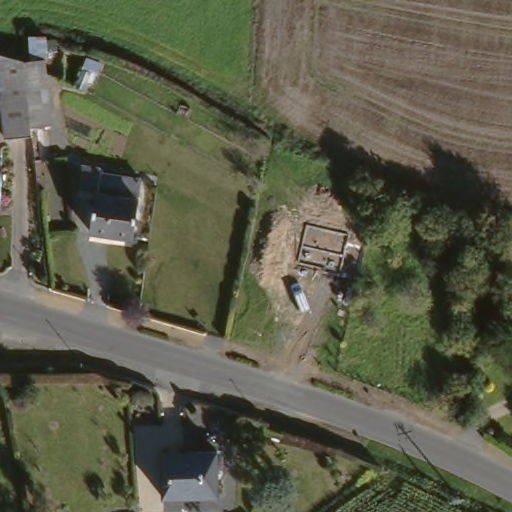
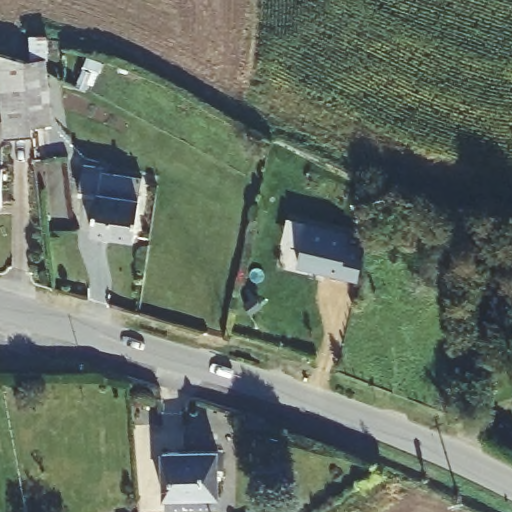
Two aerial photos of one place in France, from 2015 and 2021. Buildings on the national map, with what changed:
unchanged [(26,132),(2,131),(0,113),(0,45),(20,51),(26,132)]
unchanged [(80,163),(100,166),(99,170),(138,180),(129,236),(89,230),(95,194),(74,190),(80,163)]
unchanged [(1,204),(0,204),(0,169),(2,169),(1,204)]
new [(351,232),(348,241),(365,246),(358,281),(297,267),(307,222),(351,232)]
unchanged [(160,454),(214,451),(215,495),(160,498),(160,454)]

